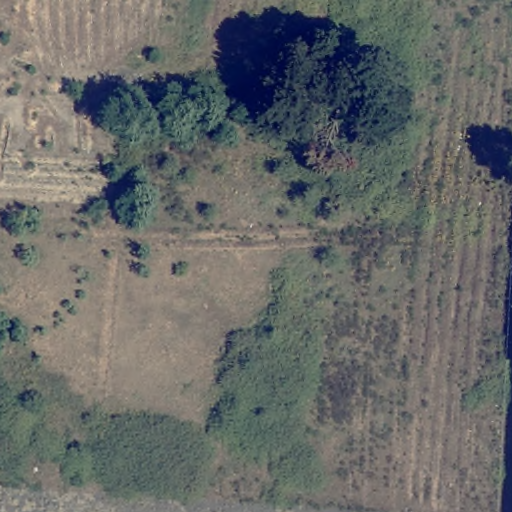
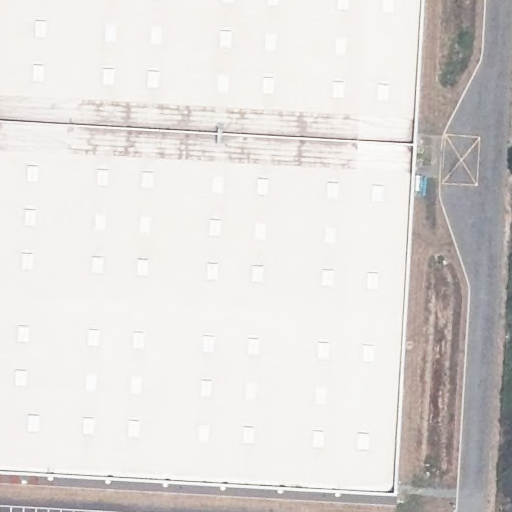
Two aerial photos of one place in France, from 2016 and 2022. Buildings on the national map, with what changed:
new [(0,483),(0,0),(422,0),(394,506),(0,483)]

